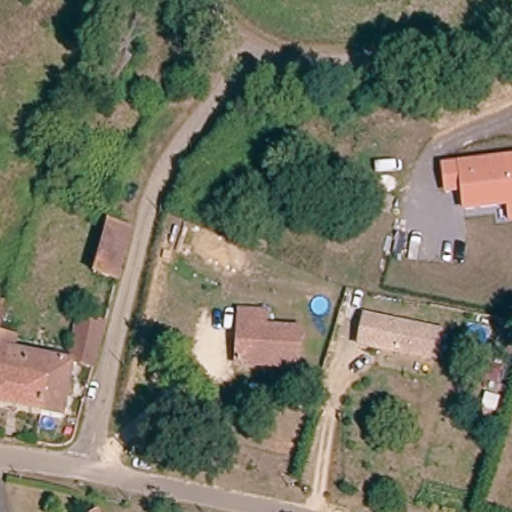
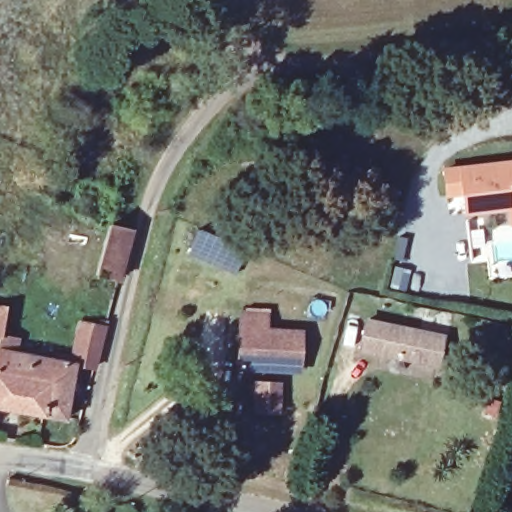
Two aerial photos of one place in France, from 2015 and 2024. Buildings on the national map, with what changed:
unchanged [(506,210),(460,214),(458,197),(443,198),(440,166),(512,158),(512,225),(507,225),(506,210)]
unchanged [(135,233),(117,280),(94,272),(112,223),(121,227),(135,233)]
new [(247,248),(235,276),(186,256),(198,228),(247,248)]
unchanged [(10,308),(0,333),(0,305),(10,308)]
unchanged [(14,353),(43,359),(45,351),(69,356),(83,317),(113,325),(96,371),(80,367),(64,418),(35,413),(40,383),(0,372),(0,334),(17,338),(14,353)]
unchanged [(241,317),(267,318),(266,333),(301,335),(300,372),(239,369),(241,317)]
unchanged [(363,335),(367,318),(443,333),(439,356),(438,361),(361,345),(363,335)]
unchanged [(35,413),(0,405),(0,372),(40,383),(35,413)]

